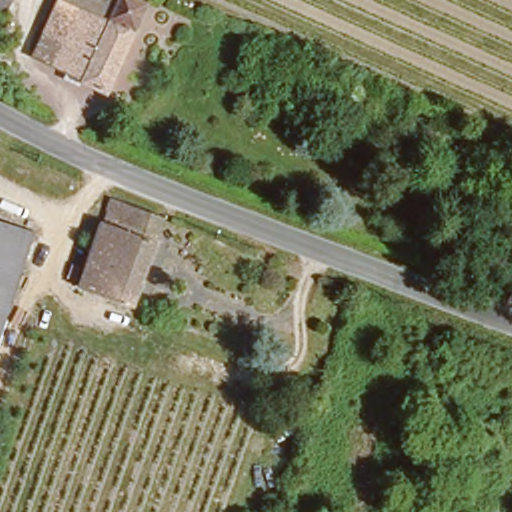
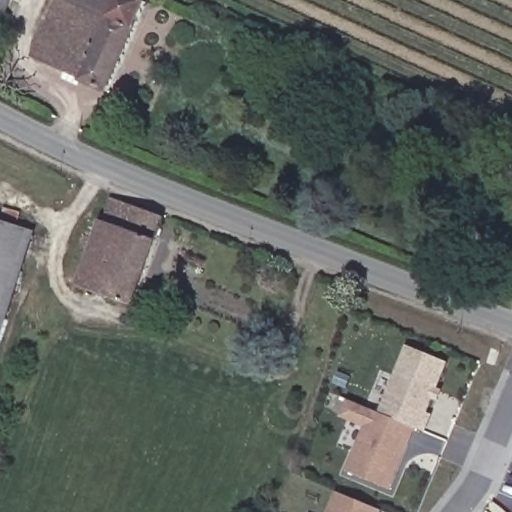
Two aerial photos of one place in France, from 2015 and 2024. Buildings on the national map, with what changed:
unchanged [(11,0),(1,20),(0,20),(0,0),(11,0)]
unchanged [(37,54),(62,0),(73,0),(85,5),(88,0),(142,0),(148,3),(110,89),(37,54)]
unchanged [(130,300),(114,295),(111,304),(83,296),(76,317),(69,314),(76,294),(81,284),(74,282),(96,216),(111,220),(115,208),(102,205),(105,189),(160,209),(130,300)]
unchanged [(34,232),(0,329),(0,221),(34,232)]
new [(438,396),(433,394),(426,413),(430,414),(423,431),(415,427),(381,413),(408,347),(446,363),(436,387),(441,389),(438,396)]
new [(348,400),(381,413),(415,427),(389,489),(346,472),(366,426),(342,416),(348,400)]
new [(337,492),(380,509),(378,512),(329,512),(337,492)]

